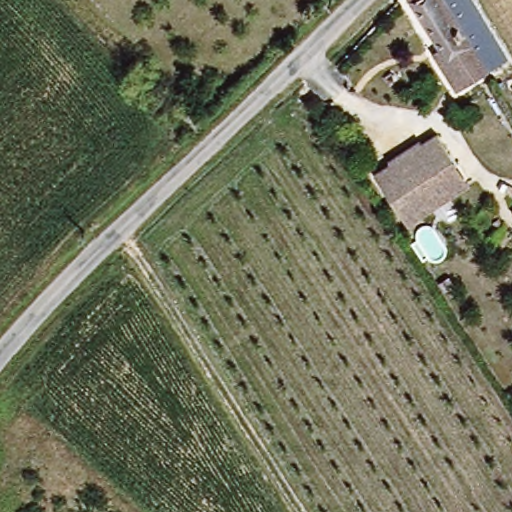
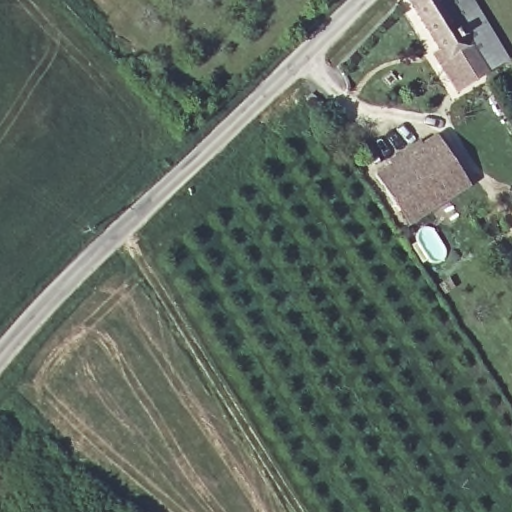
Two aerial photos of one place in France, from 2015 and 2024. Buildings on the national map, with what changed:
unchanged [(435,45),(405,0),(449,0),(495,73),(454,96),(435,69),(425,55),(435,45)]
unchanged [(402,219),(382,186),(397,176),(395,171),(432,147),(435,152),(447,144),(468,177),(402,219)]

